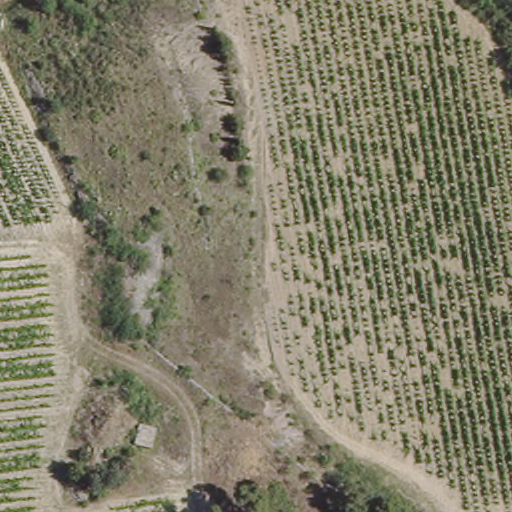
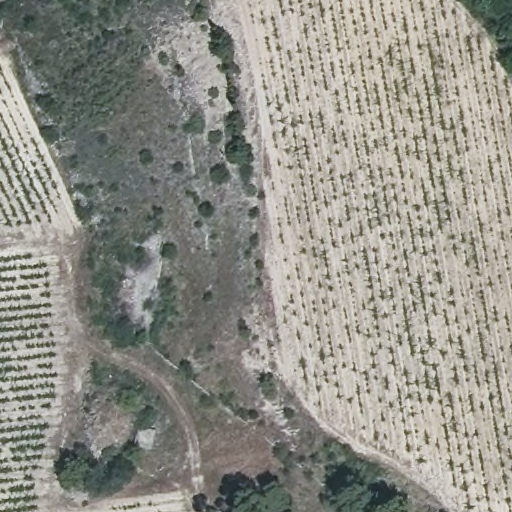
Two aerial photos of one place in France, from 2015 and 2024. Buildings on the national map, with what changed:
unchanged [(158,432),(151,453),(134,448),(139,427),(158,432)]

